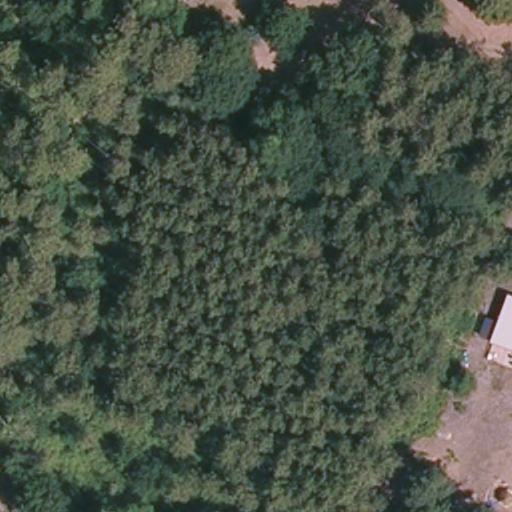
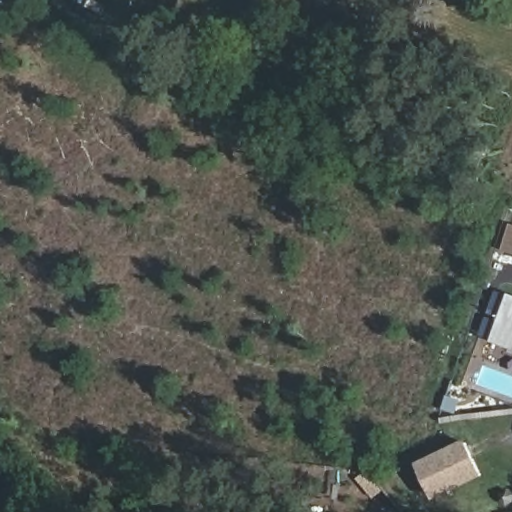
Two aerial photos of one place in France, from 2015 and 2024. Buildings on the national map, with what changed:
unchanged [(492,342),(508,297),(512,298),(512,349),(492,342)]
new [(433,500),(416,463),(466,439),(484,476),(433,500)]

